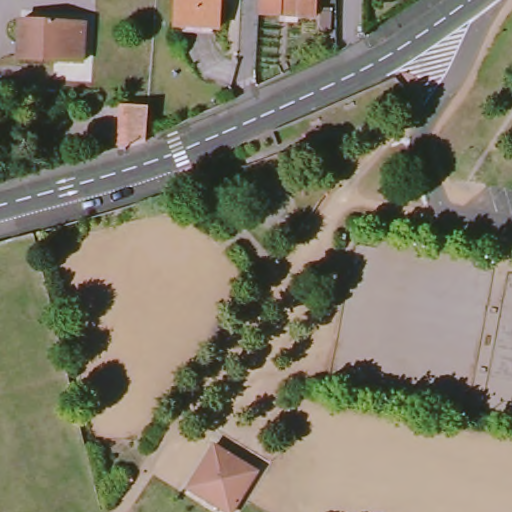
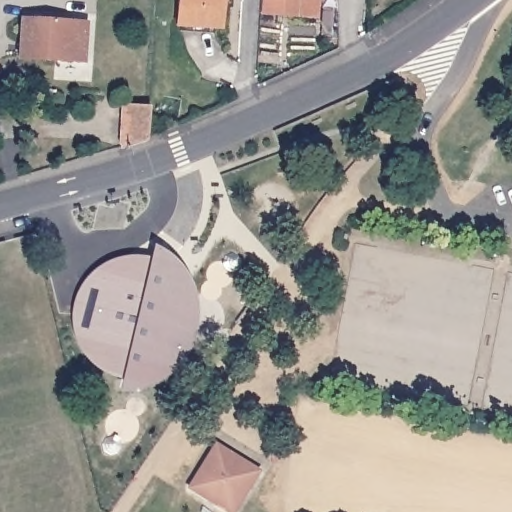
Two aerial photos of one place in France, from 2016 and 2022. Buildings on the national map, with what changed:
unchanged [(176,26),(178,0),(221,0),(219,28),(176,26)]
unchanged [(265,0),(322,0),(321,16),(302,15),(302,2),(287,1),(286,15),(265,14),(265,0)]
unchanged [(18,58),(20,21),(85,24),(82,61),(18,58)]
unchanged [(146,141),(121,148),(124,106),(148,107),(149,107),(146,141)]
new [(175,262),(186,276),(195,297),(197,317),(195,334),(190,350),(181,365),(165,378),(142,386),(119,389),(121,376),(103,373),(91,362),(81,352),(73,336),(71,320),(72,306),(78,290),(87,276),(101,265),(118,258),(136,256),(148,257),(151,247),(175,262)]
unchanged [(235,512),(228,512),(190,488),(216,445),(260,472),(235,512)]

